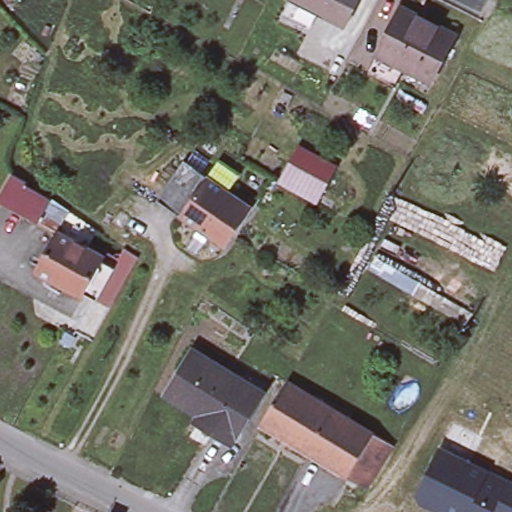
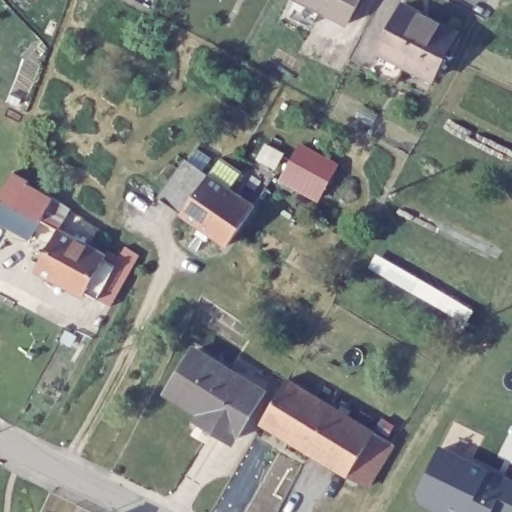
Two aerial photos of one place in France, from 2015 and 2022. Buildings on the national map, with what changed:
unchanged [(299,0),(360,0),(348,24),(299,0)]
unchanged [(368,72),(381,45),(380,44),(400,7),(404,0),(437,17),(458,28),(435,73),(407,59),(393,85),(368,72)]
unchanged [(286,176),(290,170),(291,167),(305,145),(337,164),(325,186),(323,189),(320,195),(286,176)]
unchanged [(201,226),(175,208),(162,199),(190,159),(197,149),(216,162),(209,172),(255,205),(228,245),(212,234),(208,239),(197,231),(201,226)]
unchanged [(106,258),(117,264),(99,298),(87,291),(85,296),(36,270),(60,229),(42,220),(33,240),(0,223),(0,200),(1,198),(15,171),(31,180),(29,183),(55,197),(52,201),(60,204),(61,201),(71,207),(60,227),(109,253),(106,258)]
unchanged [(76,333),(71,343),(62,339),(67,328),(76,333)]
unchanged [(194,423),(197,417),(165,397),(190,353),(238,382),(242,374),(264,386),(255,403),(230,446),(194,423)]
unchanged [(287,379),(375,433),(350,475),(262,422),(287,379)]
unchanged [(395,444),(370,486),(351,475),(376,432),(395,444)]
unchanged [(512,481),(512,512),(436,512),(416,502),(440,445),(512,481)]

